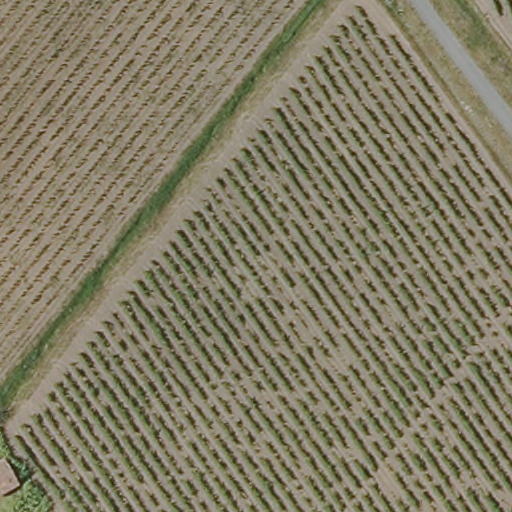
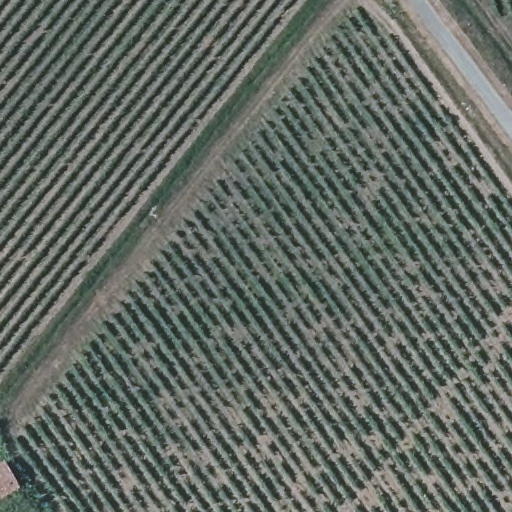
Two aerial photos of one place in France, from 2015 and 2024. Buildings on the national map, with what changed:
unchanged [(0,488),(0,456),(4,454),(17,478),(0,488)]

